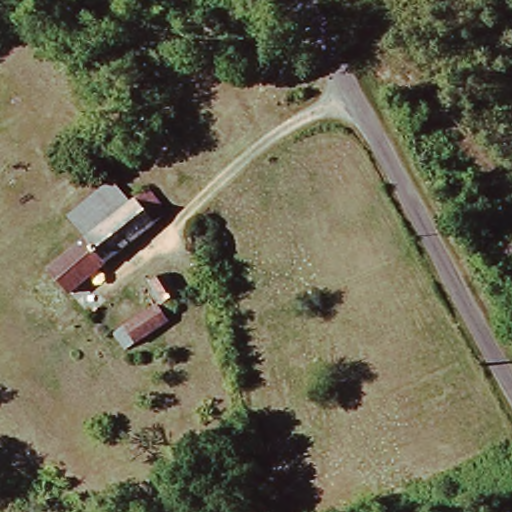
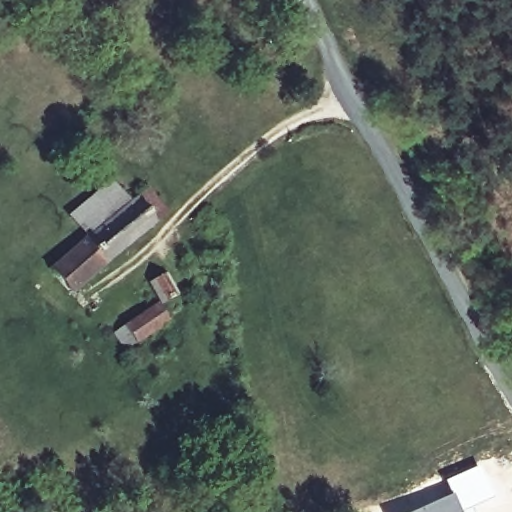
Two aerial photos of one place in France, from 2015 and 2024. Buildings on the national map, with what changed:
unchanged [(90,241),(71,217),(119,184),(136,205),(156,191),(171,220),(74,300),(53,270),(90,241)]
unchanged [(177,322),(133,356),(123,337),(158,308),(153,296),(160,291),(157,284),(172,273),(184,296),(167,308),(177,322)]
new [(493,498),(467,511),(467,512),(460,512),(449,494),(442,481),(478,465),(493,498)]
new [(460,512),(409,512),(449,494),(460,512)]

